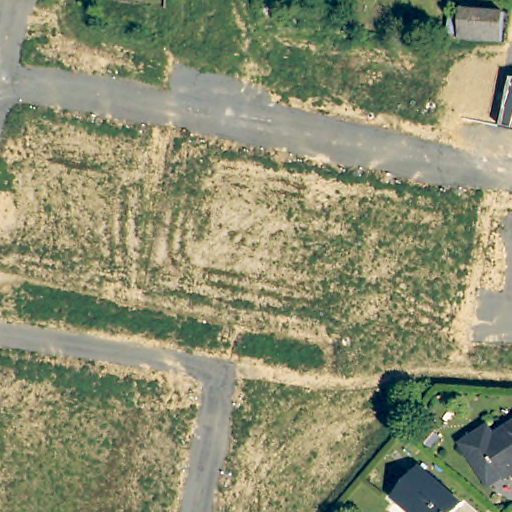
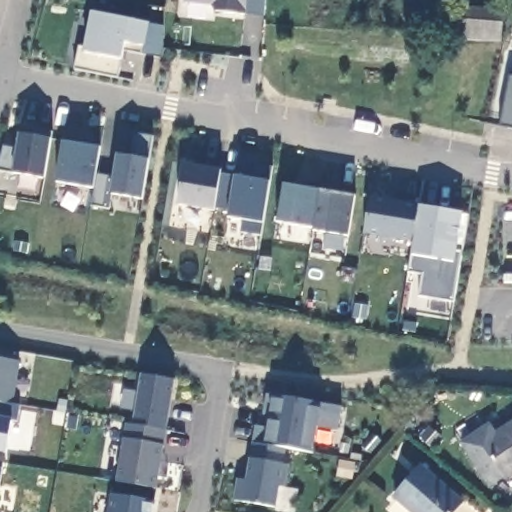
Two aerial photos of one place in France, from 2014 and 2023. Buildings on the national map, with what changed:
new [(217,11),(213,6),(185,3),(185,0),(248,0),(247,14),(217,11)]
unchanged [(449,15),(461,15),(462,8),(504,11),(503,42),(459,40),(447,39),(449,15)]
new [(75,69),(79,47),(85,47),(92,12),(130,19),(151,23),(146,47),(142,54),(129,51),(127,60),(122,60),(118,77),(75,69)]
unchanged [(510,78),(512,78),(512,128),(500,125),(510,78)]
new [(19,132),(33,134),(34,127),(54,130),(53,138),(46,179),(12,174),(0,171),(0,154),(3,145),(17,147),(19,132)]
new [(93,206),(97,174),(114,176),(117,154),(133,157),(135,135),(153,137),(149,159),(143,200),(115,195),(110,208),(93,206)]
new [(63,141),(102,146),(97,174),(95,188),(56,182),(63,141)]
new [(182,163),(220,170),(234,174),(253,177),(256,164),(272,166),(269,182),(262,222),(260,235),(241,231),(240,218),(228,215),(229,212),(215,210),(179,204),(182,163)]
new [(284,184),(320,190),(355,196),(349,234),(314,229),(315,227),(279,222),(284,184)]
new [(370,196),(419,205),(463,213),(457,250),(463,251),(454,301),(420,296),(422,274),(410,272),(412,254),(413,242),(364,234),(370,196)]
new [(20,362),(14,403),(21,404),(18,420),(12,419),(6,452),(0,451),(0,358),(20,362)]
new [(165,445),(157,488),(117,481),(125,438),(127,423),(134,424),(142,374),(176,381),(165,445)]
unchanged [(489,424),(495,433),(512,422),(512,475),(506,479),(503,474),(488,483),(461,442),(476,432),(489,424)]
new [(235,501),(238,479),(247,479),(251,458),(253,442),(287,448),(286,465),(290,466),(286,487),(280,486),(277,507),(235,501)]
new [(3,463),(0,481),(0,463),(3,463)]
unchanged [(421,467),(463,503),(455,512),(411,512),(395,497),(421,467)]
new [(113,495),(154,502),(152,512),(110,512),(113,495)]

